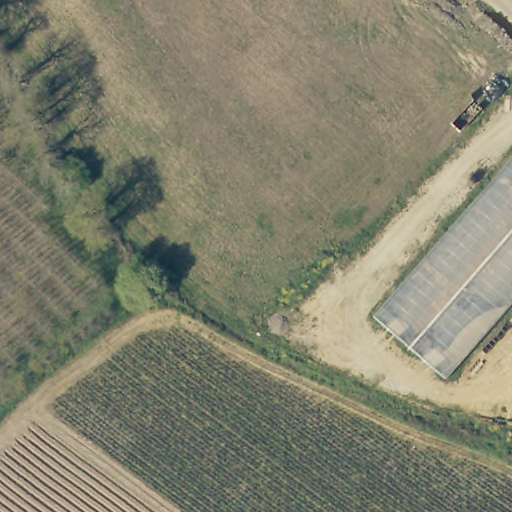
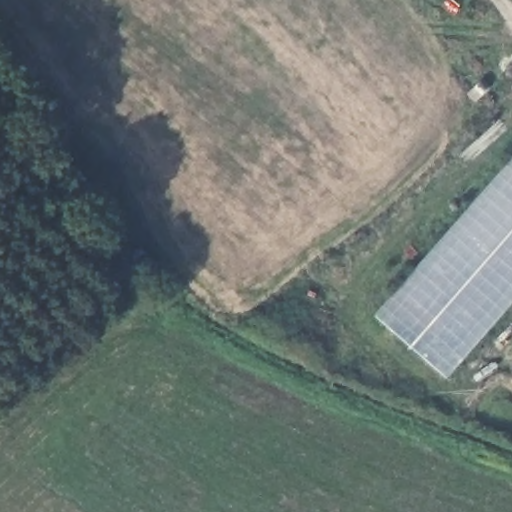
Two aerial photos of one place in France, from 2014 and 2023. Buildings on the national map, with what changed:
unchanged [(372,315),(512,153),(512,303),(447,378),(372,315)]

